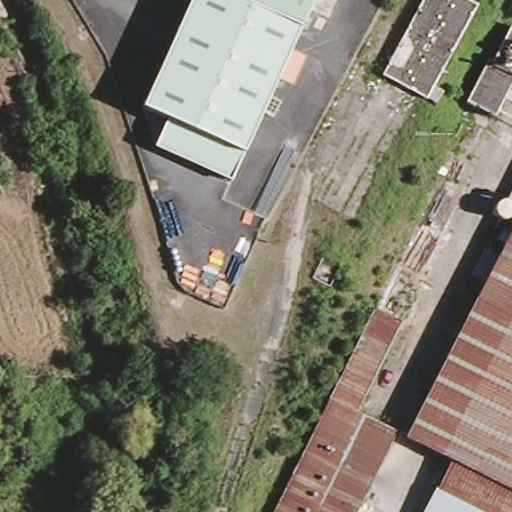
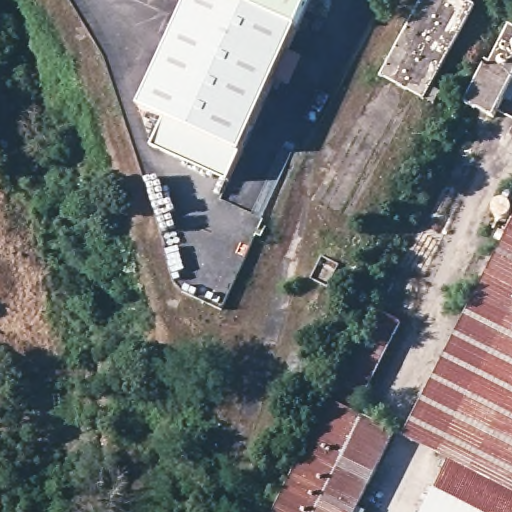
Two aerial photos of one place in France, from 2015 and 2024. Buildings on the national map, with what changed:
unchanged [(190,0),(334,0),(322,26),(304,18),(288,53),(295,76),(288,90),(282,88),(275,85),(273,90),(270,95),(267,101),(240,161),(165,125),(137,112),(190,0)]
unchanged [(388,78),(427,0),(479,0),(430,100),(388,78)]
unchanged [(512,26),(512,87),(495,120),(467,106),(462,103),(485,58),(490,62),(510,25),(512,26)]
unchanged [(227,189),(152,151),(165,125),(240,161),(227,189)]
unchanged [(398,460),(512,230),(512,512),(496,512),(437,480),(398,460)]
unchanged [(430,269),(362,407),(403,429),(362,512),(277,512),(404,254),(430,269)]
unchanged [(437,480),(496,512),(420,512),(437,480)]
unchanged [(8,512),(0,512),(0,492),(10,510),(8,512)]

